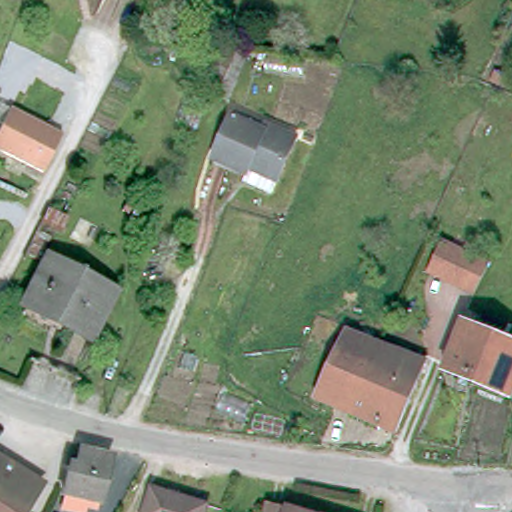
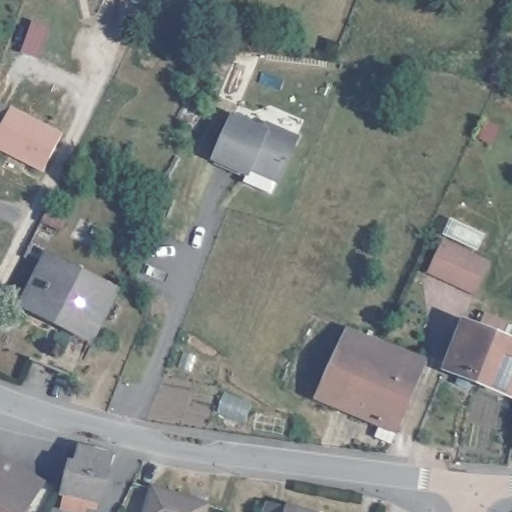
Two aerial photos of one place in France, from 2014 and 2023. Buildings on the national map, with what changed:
unchanged [(62,134),(49,160),(43,173),(0,152),(0,128),(10,108),(62,134)]
unchanged [(249,174),(213,159),(232,116),(264,129),(266,124),(298,137),(279,181),(277,186),(249,174)]
unchanged [(49,206),(63,213),(58,224),(43,217),(49,206)]
unchanged [(429,275),(443,244),(472,256),(487,263),(472,295),(457,288),(429,275)]
unchanged [(115,291),(91,337),(22,303),(46,257),(115,291)]
unchanged [(462,319),(512,339),(512,396),(442,369),(462,319)]
unchanged [(397,432),(316,399),(349,330),(426,361),(397,432)]
unchanged [(60,494),(69,461),(75,462),(78,446),(114,455),(103,504),(60,494)]
unchanged [(47,482),(28,512),(0,512),(0,454),(47,482)]
unchanged [(206,512),(144,512),(152,487),(208,504),(206,512)]
unchanged [(289,505),(287,512),(266,512),(270,499),(289,505)]
unchanged [(310,512),(287,512),(289,505),(310,512)]

